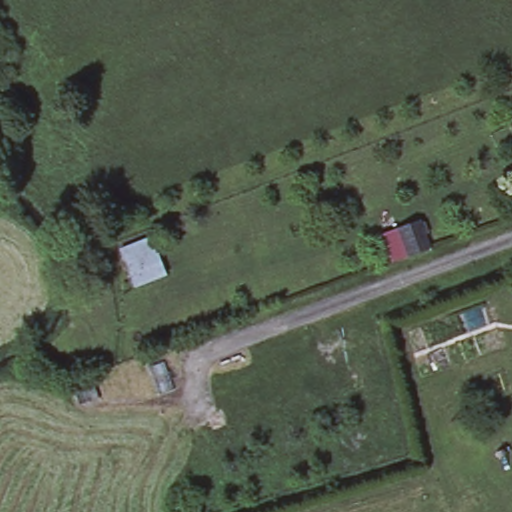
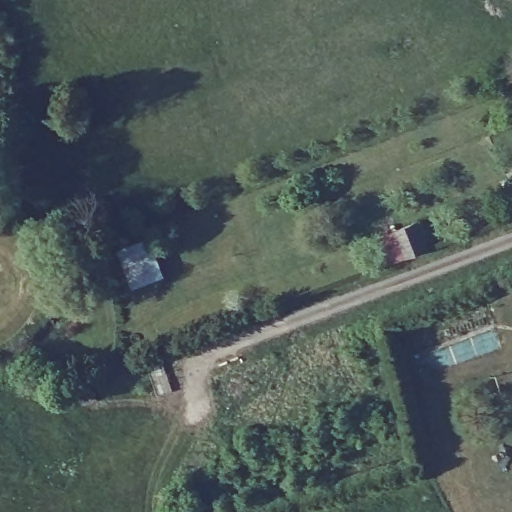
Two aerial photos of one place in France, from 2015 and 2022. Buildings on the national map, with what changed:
unchanged [(417,220),(427,248),(406,256),(396,228),(417,220)]
unchanged [(119,248),(152,233),(167,276),(130,285),(119,248)]

